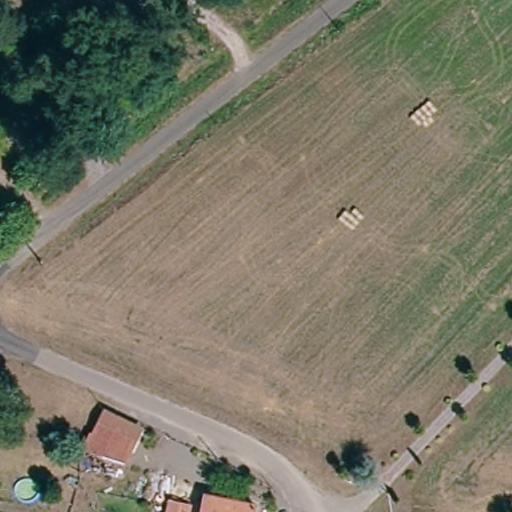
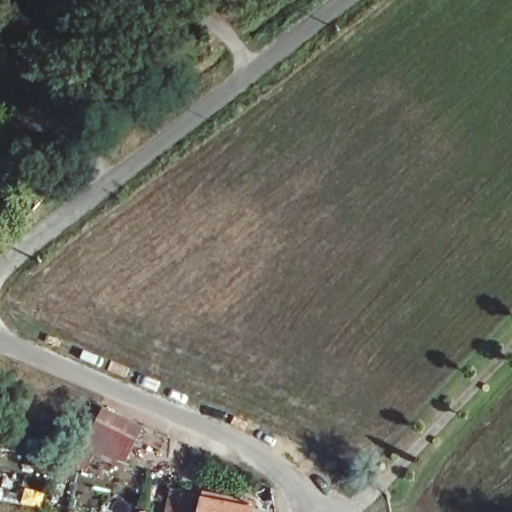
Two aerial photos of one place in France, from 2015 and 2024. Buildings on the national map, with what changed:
unchanged [(92,433),(104,410),(142,428),(127,460),(124,467),(100,455),(85,447),(92,433)]
unchanged [(207,496),(254,505),(252,512),(203,512),(207,496)]
unchanged [(187,506),(186,512),(167,512),(170,502),(187,506)]

